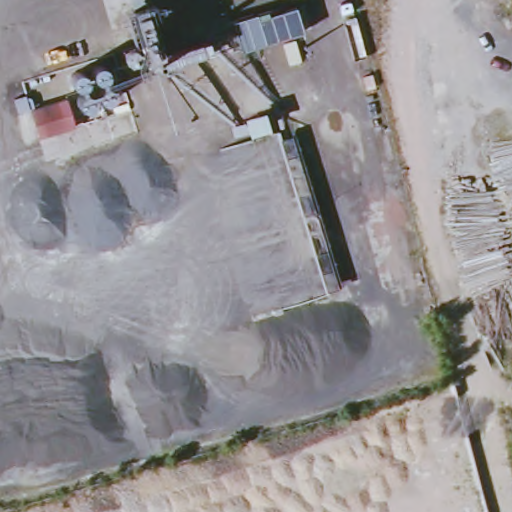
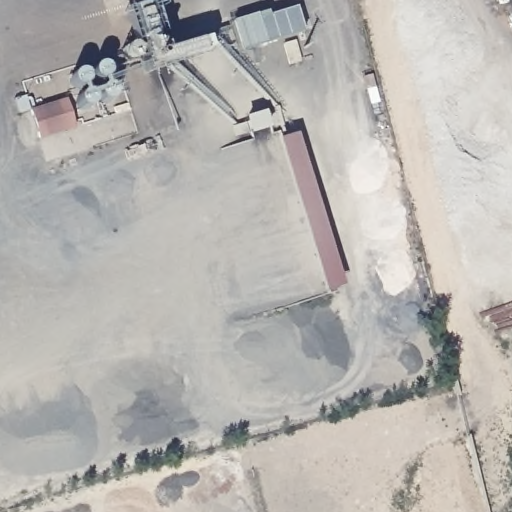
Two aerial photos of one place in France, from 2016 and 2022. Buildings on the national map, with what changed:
unchanged [(228,19),(272,6),(275,13),(298,6),(305,30),(236,50),(228,19)]
unchanged [(117,98),(77,115),(70,101),(115,87),(117,98)]
unchanged [(61,109),(67,129),(37,136),(30,118),(61,109)]
unchanged [(301,139),(347,302),(336,306),(289,143),(301,139)]

